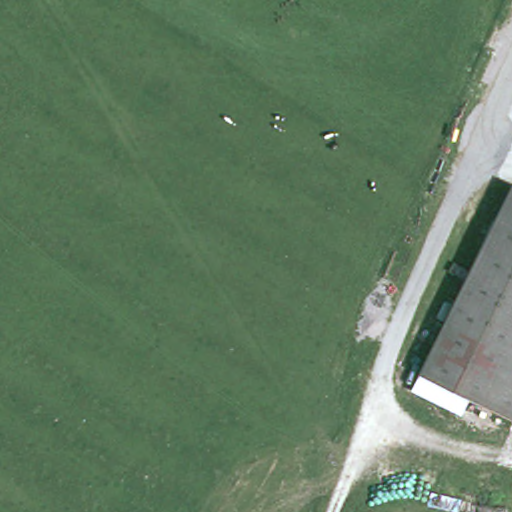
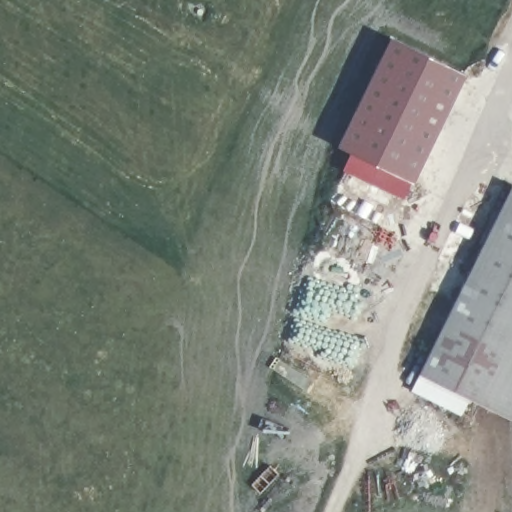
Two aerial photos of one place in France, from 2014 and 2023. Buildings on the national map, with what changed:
new [(465,69),(411,180),(335,143),(390,32),(465,69)]
unchanged [(420,372),(423,364),(512,185),(512,418),(420,372)]

